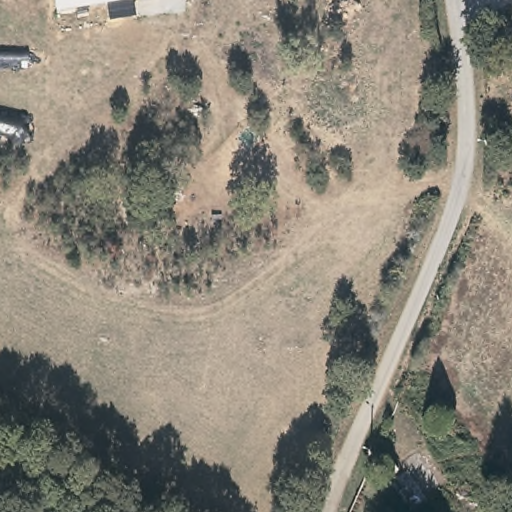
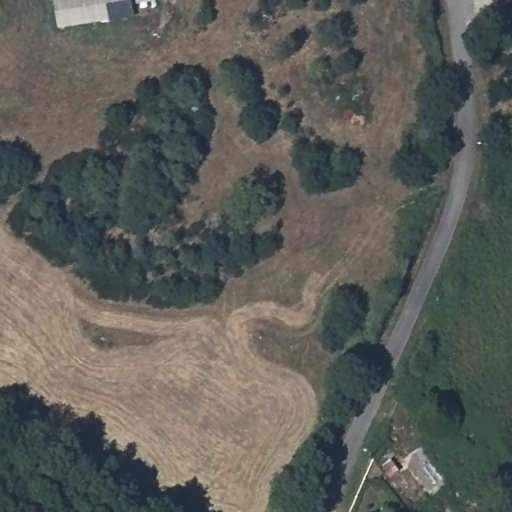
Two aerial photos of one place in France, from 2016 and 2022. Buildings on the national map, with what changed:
unchanged [(134,2),(137,18),(110,23),(107,8),(55,15),(53,0),(151,0),(134,2)]

